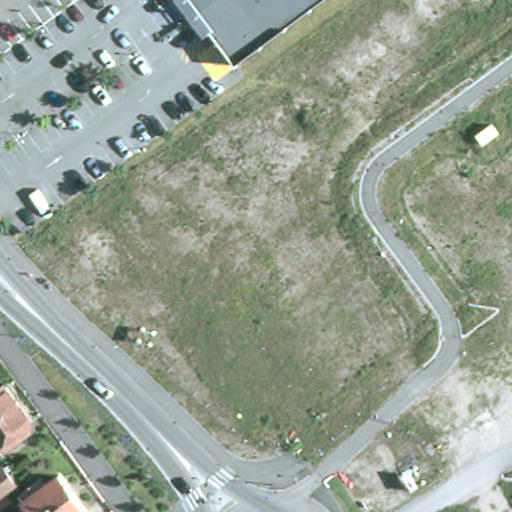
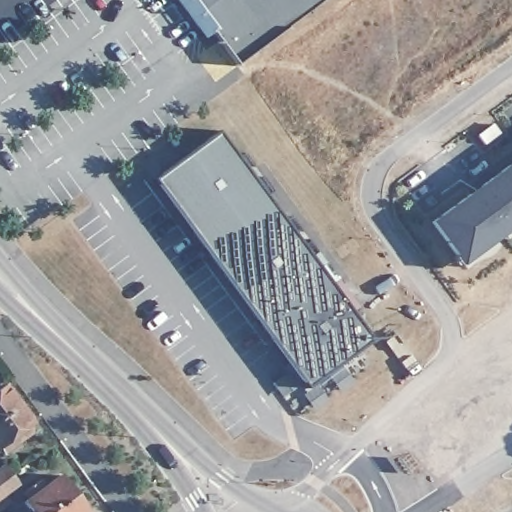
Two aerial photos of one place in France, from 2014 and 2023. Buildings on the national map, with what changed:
unchanged [(188,0),(321,0),(239,63),(188,0)]
new [(504,129),(488,140),(482,131),(497,120),(504,129)]
new [(311,258),(317,252),(360,307),(352,313),(372,339),(307,387),(154,181),(217,133),(311,258)]
new [(512,222),(510,223),(505,216),(498,221),(507,233),(502,236),(499,231),(461,259),(432,220),(470,192),(482,184),(512,161),(512,222)]
unchanged [(5,384),(19,403),(0,417),(0,388),(5,384)]
unchanged [(32,421),(20,431),(24,437),(6,450),(2,444),(0,445),(0,417),(19,403),(32,421)]
unchanged [(7,466),(12,474),(19,482),(5,492),(0,495),(0,470),(7,466)]
unchanged [(25,501),(30,498),(25,491),(43,478),(48,484),(61,474),(74,492),(57,506),(48,512),(33,512),(25,501)]
unchanged [(87,511),(86,512),(48,512),(57,506),(74,492),(87,511)]

